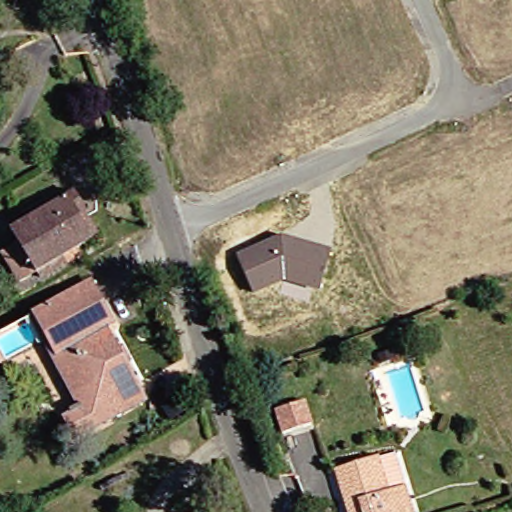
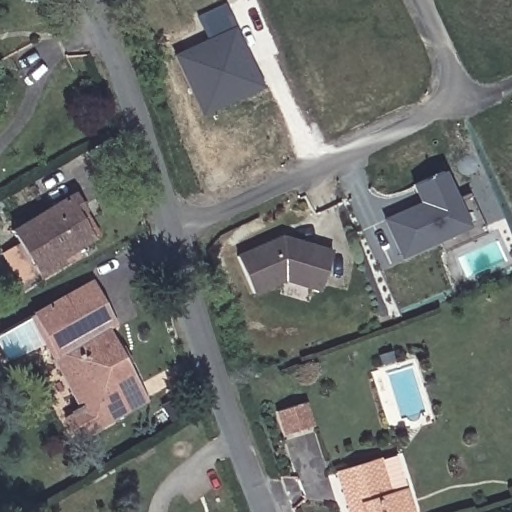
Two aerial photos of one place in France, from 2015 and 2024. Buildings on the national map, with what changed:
new [(196,95),(177,56),(235,28),(263,86),(232,100),(205,113),(196,95)]
new [(466,225),(438,239),(401,254),(386,218),(422,203),(414,184),(442,172),(466,225)]
unchanged [(22,239),(15,228),(77,191),(102,233),(22,282),(5,251),(22,239)]
unchanged [(319,293),(283,281),(252,294),(235,254),(281,234),(331,250),(319,293)]
unchanged [(54,348),(34,313),(91,281),(110,316),(54,348)]
unchanged [(65,414),(77,407),(81,405),(53,356),(57,353),(54,348),(110,316),(113,322),(106,327),(148,399),(92,431),(79,439),(65,414)]
unchanged [(315,414),(286,424),(279,400),(308,391),(315,414)]
unchanged [(382,460),(392,495),(410,490),(416,512),(358,512),(347,469),(382,460)]

